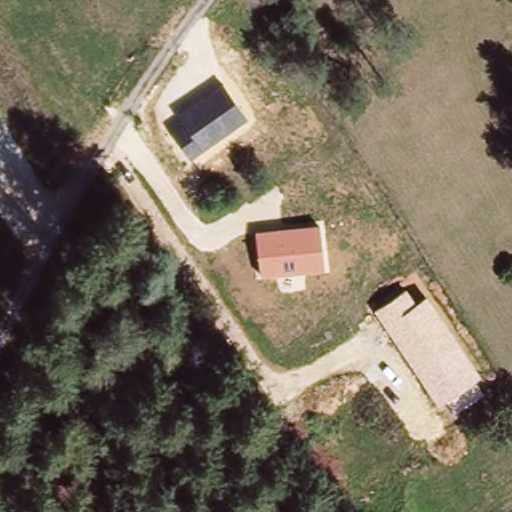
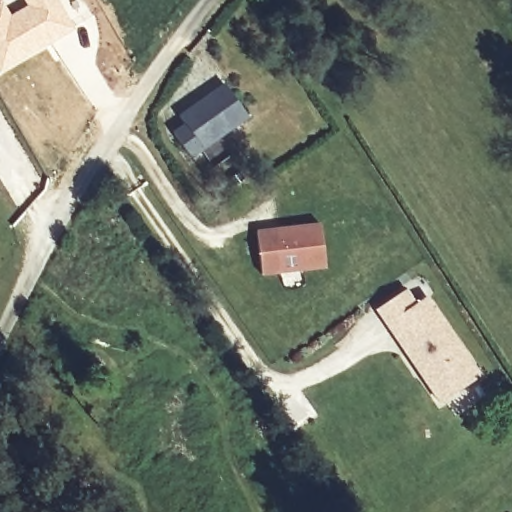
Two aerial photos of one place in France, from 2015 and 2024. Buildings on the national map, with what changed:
new [(10,14),(24,5),(21,0),(58,0),(76,29),(0,75),(0,3),(3,1),(10,14)]
unchanged [(247,117),(191,158),(174,135),(185,126),(179,118),(224,85),(247,117)]
unchanged [(325,268),(259,275),(255,232),(320,223),(325,268)]
unchanged [(480,375),(437,403),(374,310),(406,288),(415,303),(426,296),(480,375)]

